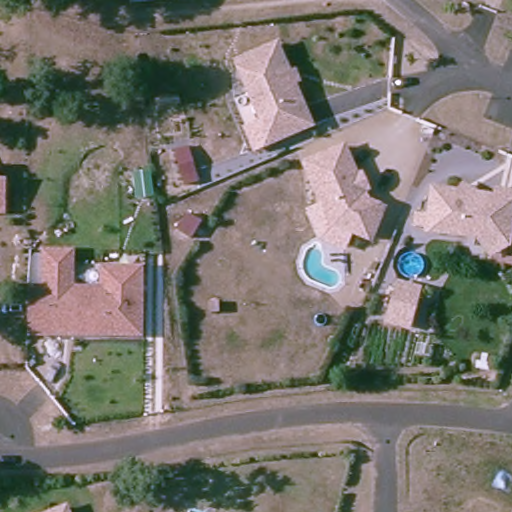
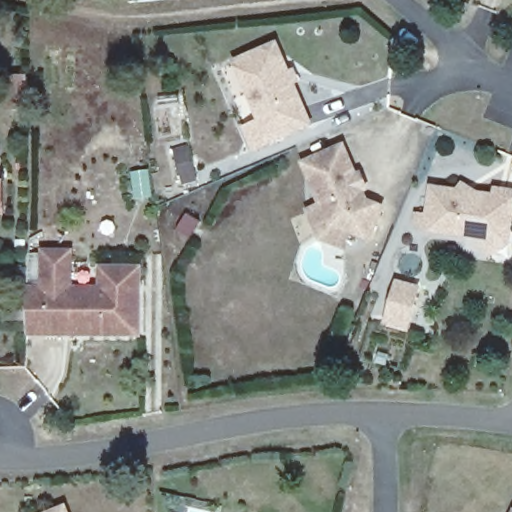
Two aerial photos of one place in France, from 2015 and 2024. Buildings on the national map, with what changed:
unchanged [(277,43),(309,125),(268,141),(237,59),(277,43)]
unchanged [(357,177),(362,175),(367,190),(362,191),(367,202),(382,209),(370,240),(330,224),(306,162),(345,146),(357,177)]
unchanged [(483,240),(434,230),(442,187),(505,199),(506,192),(512,193),(512,250),(496,259),(483,240)]
unchanged [(142,337),(29,338),(28,286),(41,286),(42,250),(74,249),(75,285),(99,286),(98,265),(142,266),(142,337)]
unchanged [(389,321),(390,316),(397,283),(407,286),(418,287),(417,292),(412,320),(411,325),(389,321)]
unchanged [(63,507),(65,512),(49,512),(63,507)]

